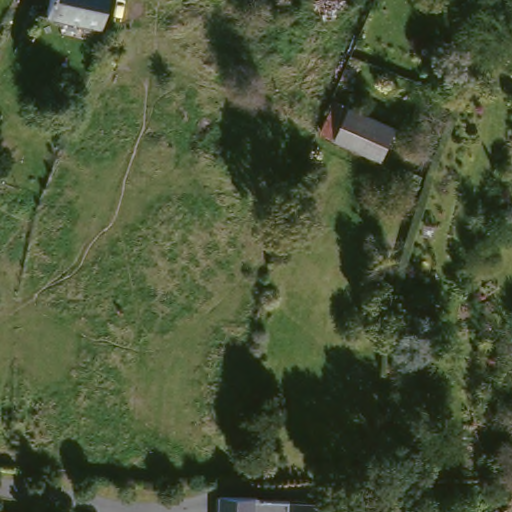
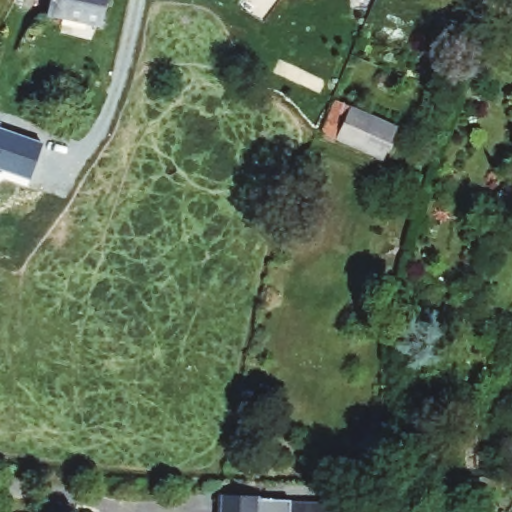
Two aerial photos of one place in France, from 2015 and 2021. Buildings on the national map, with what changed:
unchanged [(98,29),(47,21),(50,0),(104,0),(98,29)]
unchanged [(394,128),(380,160),(340,141),(322,133),(336,100),(394,128)]
new [(42,144),(29,179),(0,169),(0,129),(42,144)]
unchanged [(416,186),(397,182),(397,178),(400,168),(419,174),(416,186)]
unchanged [(291,497),(291,509),(329,512),(221,512),(222,491),(260,493),(260,495),(291,497)]

